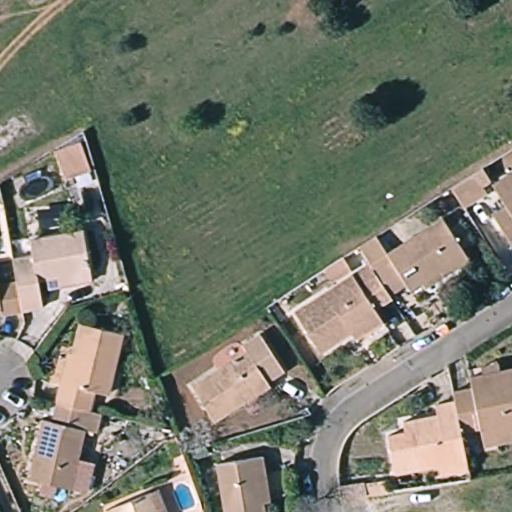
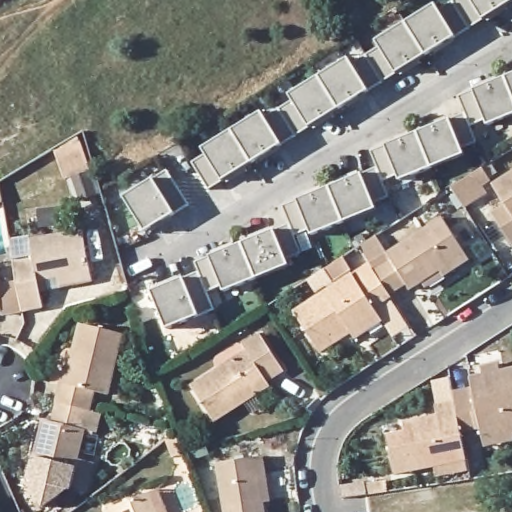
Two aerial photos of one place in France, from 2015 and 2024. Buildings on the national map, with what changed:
new [(482,19),(455,37),(396,73),(367,91),(309,126),(281,145),(221,180),(207,188),(192,163),(207,156),(203,148),(261,113),(265,118),(294,102),(289,95),(348,59),(352,65),(381,49),(376,42),(435,6),(439,11),(459,0),(512,0),(512,1),(482,19)]
new [(484,120),(469,126),(476,144),(461,150),(463,156),(399,181),(396,175),(381,181),(388,198),(373,204),(375,209),(311,235),(308,230),(293,236),(300,254),(286,261),(288,267),(223,292),(222,287),(205,292),(212,310),(198,316),(168,328),(152,292),(183,279),(199,272),(196,262),(210,257),(274,231),(289,224),(283,206),(298,200),(361,174),(376,167),(370,152),(386,146),(450,120),(464,114),(458,96),(474,90),(512,75),(512,116),(487,125),(484,120)]
new [(81,142),(99,194),(77,202),(59,149),(81,142)]
unchanged [(487,185),(512,169),(512,242),(510,243),(491,212),(502,205),(487,185)]
new [(174,214),(145,231),(124,197),(154,180),(168,171),(188,205),(174,214)]
unchanged [(372,274),(370,272),(389,260),(384,250),(439,218),(463,255),(408,291),(403,283),(385,294),(372,274)]
unchanged [(37,291),(38,304),(17,306),(12,272),(10,259),(30,256),(28,240),(82,234),(88,273),(89,283),(37,291)]
unchanged [(12,272),(17,306),(0,308),(0,274),(12,272)]
unchanged [(387,297),(372,305),(377,312),(322,349),(295,308),(353,272),(359,283),(372,274),(385,294),(387,297)]
unchanged [(58,384),(65,384),(83,326),(123,339),(105,399),(94,395),(87,416),(51,405),(58,384)]
unchanged [(240,406),(214,420),(189,380),(242,349),(239,344),(256,334),(277,369),(264,377),(269,386),(240,406)]
unchanged [(464,375),(512,368),(512,431),(474,437),(473,428),(455,430),(451,405),(448,388),(465,386),(464,375)]
unchanged [(91,436),(82,434),(63,493),(22,480),(40,423),(45,424),(51,405),(87,416),(97,419),(91,436)]
unchanged [(439,476),(438,467),(392,474),(387,435),(401,432),(401,422),(436,417),(435,407),(451,405),(455,430),(461,463),(462,471),(463,473),(439,476)]
unchanged [(258,479),(262,512),(222,512),(215,464),(260,457),(264,479),(258,479)]
unchanged [(389,477),(391,486),(366,489),(365,481),(389,477)]
unchanged [(157,512),(108,512),(107,508),(150,492),(157,512)]

